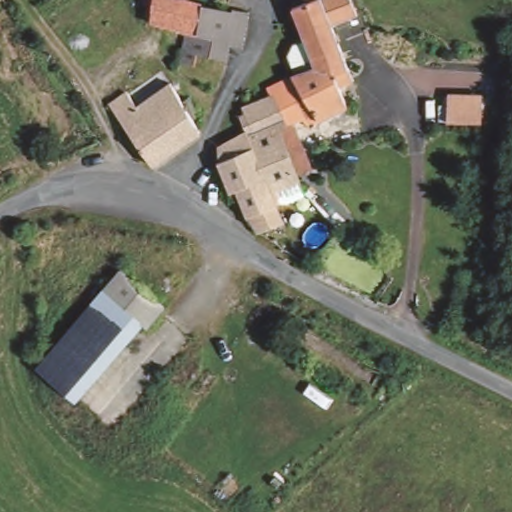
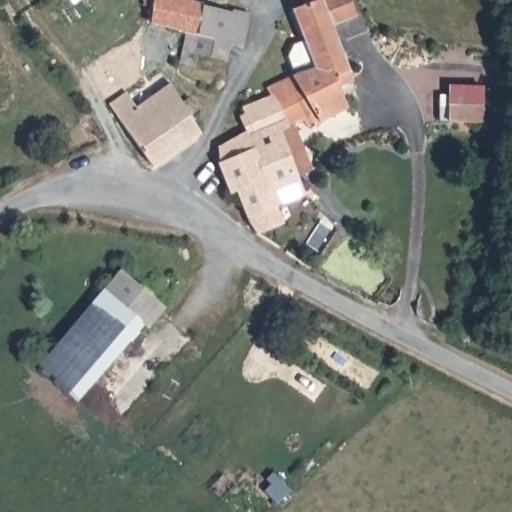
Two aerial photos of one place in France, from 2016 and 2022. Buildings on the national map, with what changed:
unchanged [(188,34),(180,32),(173,30),(174,27),(146,21),(150,0),(179,0),(196,5),(188,34)]
unchanged [(266,87),(295,76),(288,57),(292,46),(303,42),(291,10),(305,5),(304,0),(317,0),(349,0),(356,19),(331,29),(338,45),(344,61),(352,85),(339,90),(339,93),(346,106),(349,111),(345,114),(329,122),(325,125),(319,117),(305,123),(296,127),(288,131),(279,115),(270,97),(266,87)]
unchanged [(188,34),(196,5),(225,12),(226,10),(243,14),(236,46),(225,44),(220,59),(191,51),(188,63),(172,58),(180,32),(188,34)]
unchanged [(97,95),(117,80),(125,92),(121,96),(133,110),(168,86),(196,131),(195,136),(150,169),(123,129),(97,95)]
unchanged [(443,90),(474,90),(474,119),(443,119),(443,90)]
unchanged [(218,150),(252,131),(243,111),(262,101),(270,97),(279,115),(288,131),(286,132),(279,135),(305,193),(276,207),(285,225),(264,235),(262,235),(258,237),(249,222),(240,205),(232,207),(230,209),(226,198),(231,195),(220,167),(218,150)]
unchanged [(165,307),(148,331),(144,327),(79,406),(35,371),(119,268),(165,307)]

